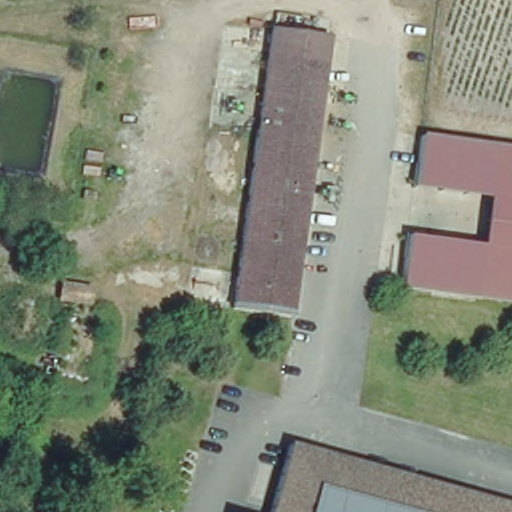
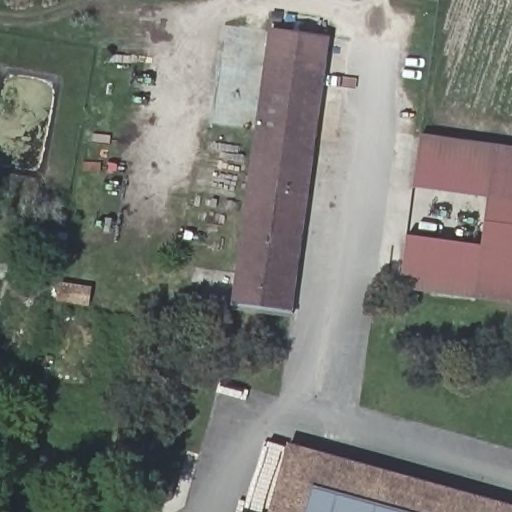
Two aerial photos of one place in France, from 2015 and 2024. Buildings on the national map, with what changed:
unchanged [(290,315),(232,306),(270,30),(329,39),(290,315)]
unchanged [(413,138),(512,150),(512,302),(399,287),(407,235),(473,242),(477,197),(408,189),(413,138)]
unchanged [(284,444),(512,501),(512,512),(268,512),(284,444)]

